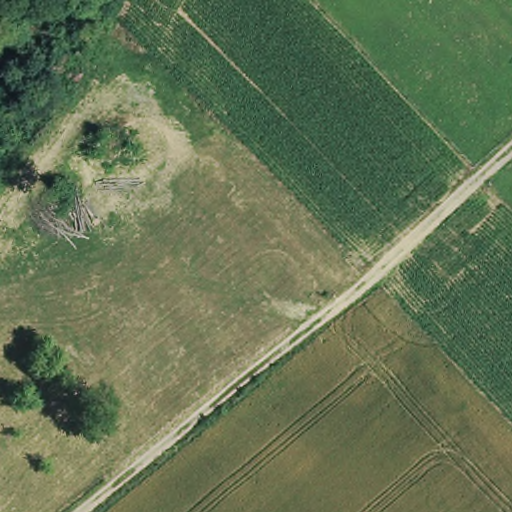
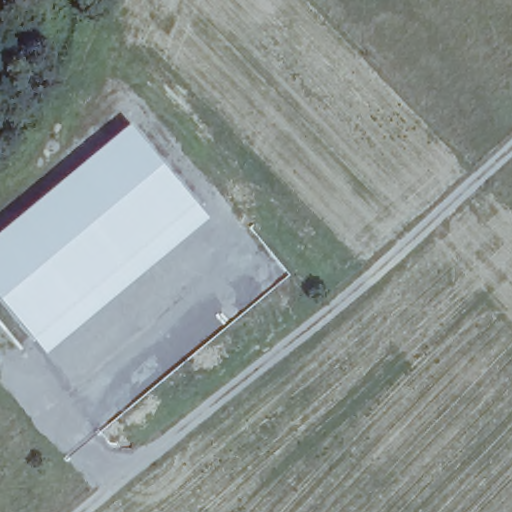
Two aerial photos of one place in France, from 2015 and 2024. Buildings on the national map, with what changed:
new [(0,295),(0,234),(132,123),(211,217),(48,353),(0,295)]

